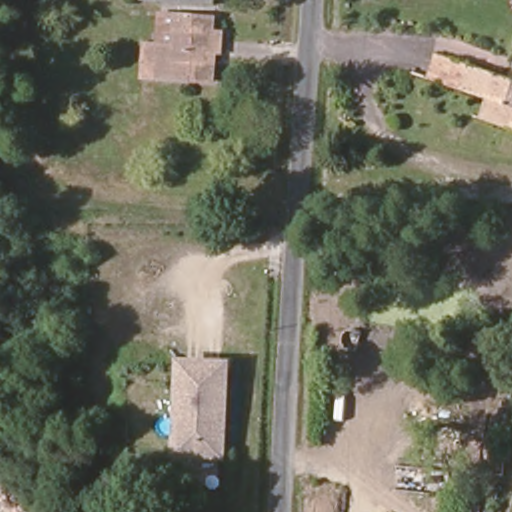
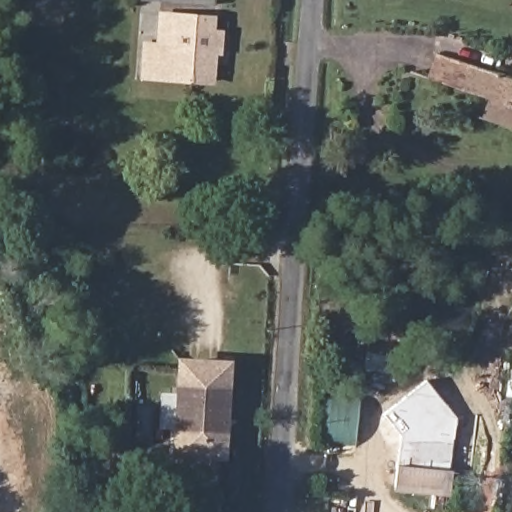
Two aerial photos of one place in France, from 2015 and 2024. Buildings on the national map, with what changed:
unchanged [(206,1),(186,0),(206,0),(206,1)]
new [(177,20),(173,51),(159,50),(157,81),(139,79),(142,41),(155,42),(157,10),(216,16),(216,23),(212,23),(177,20)]
unchanged [(215,70),(214,84),(157,81),(159,50),(173,51),(177,20),(212,23),(212,36),(222,37),(222,56),(211,55),(210,70),(215,70)]
unchanged [(496,98),(468,88),(433,77),(442,53),(477,65),(511,77),(512,78),(512,127),(489,118),(496,98)]
unchanged [(229,366),(221,455),(178,452),(185,362),(229,366)]
new [(395,463),(400,435),(383,413),(426,380),(457,416),(450,468),(395,463)]
new [(395,463),(455,469),(452,498),(392,492),(395,463)]

